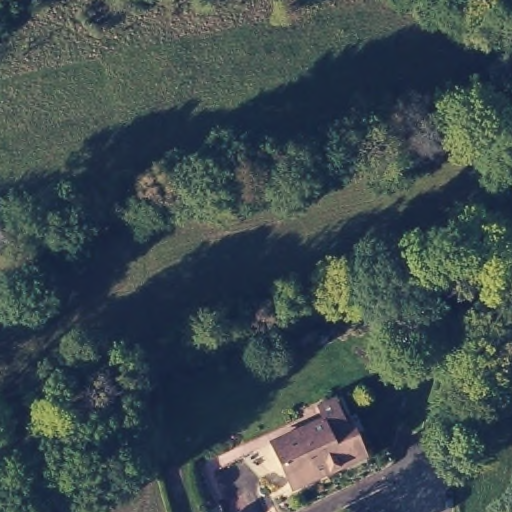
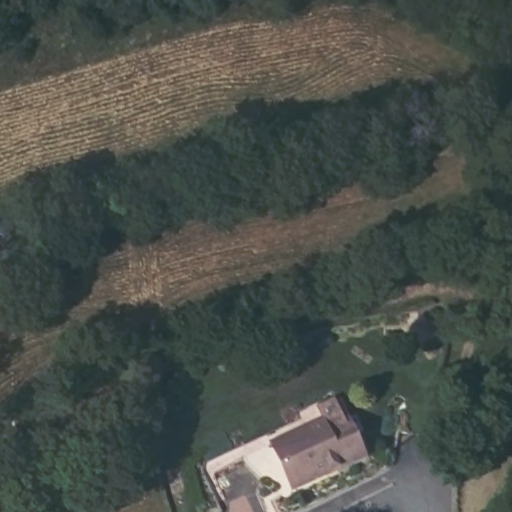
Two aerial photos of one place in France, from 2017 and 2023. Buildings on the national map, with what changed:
unchanged [(331,475),(329,470),(297,485),(286,461),(278,465),(272,470),(267,478),(252,462),(249,457),(278,444),(305,432),(328,421),(345,414),(348,422),(365,459),(331,475)]

